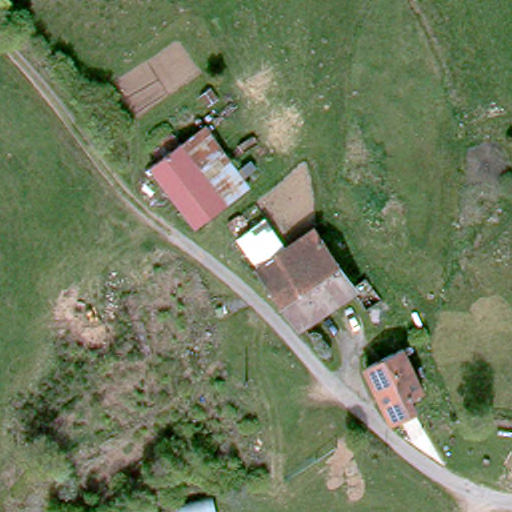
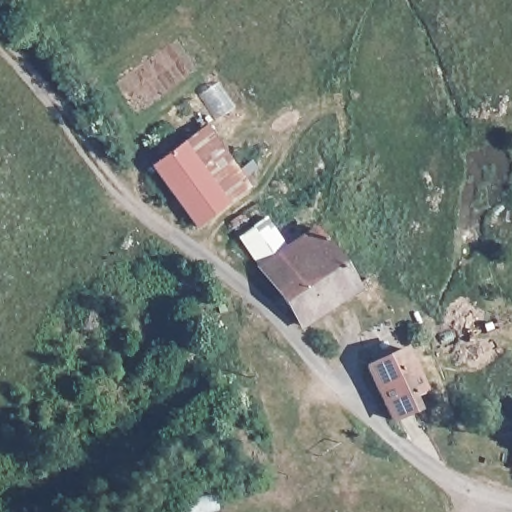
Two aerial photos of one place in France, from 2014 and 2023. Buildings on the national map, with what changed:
unchanged [(188,149),(226,201),(195,224),(155,170),(188,149)]
unchanged [(269,221),(293,254),(261,275),(238,244),(269,221)]
unchanged [(261,275),(293,254),(319,236),(356,293),(299,329),(261,275)]
unchanged [(369,285),(386,309),(372,318),(356,293),(369,285)]
unchanged [(374,366),(396,358),(409,391),(389,400),(386,397),(374,366)]

